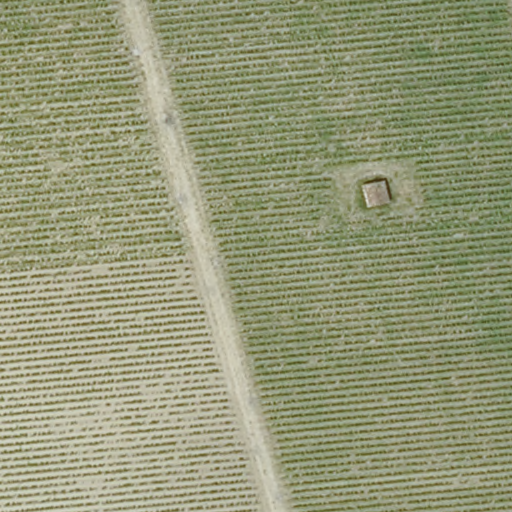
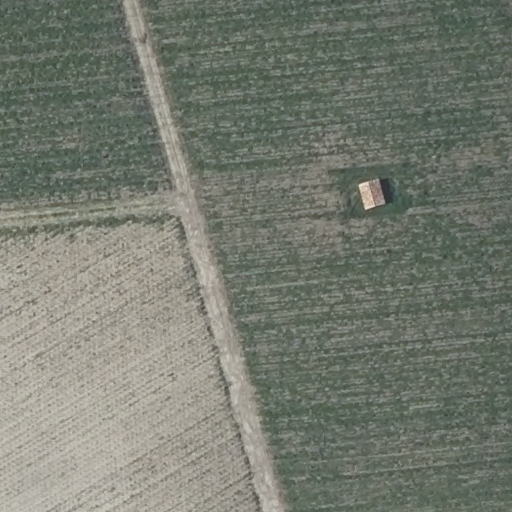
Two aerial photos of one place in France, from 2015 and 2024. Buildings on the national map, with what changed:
unchanged [(385,182),(390,203),(388,204),(363,208),(362,187),(385,182)]

